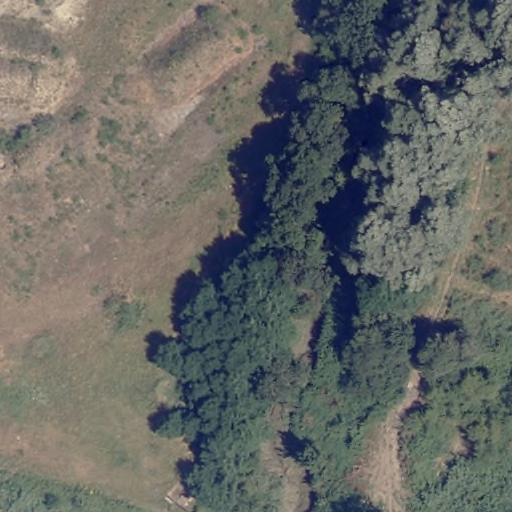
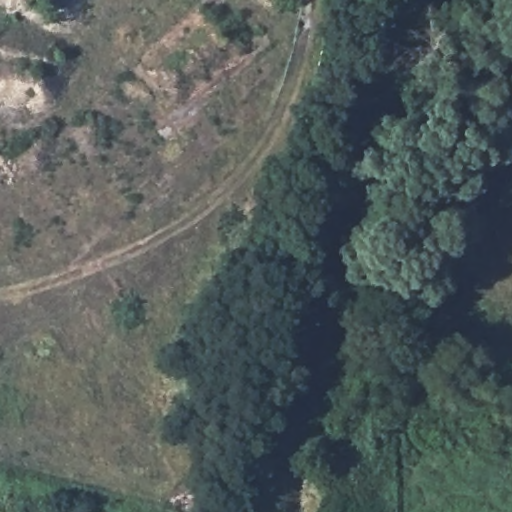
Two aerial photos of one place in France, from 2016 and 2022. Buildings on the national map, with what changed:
[]

